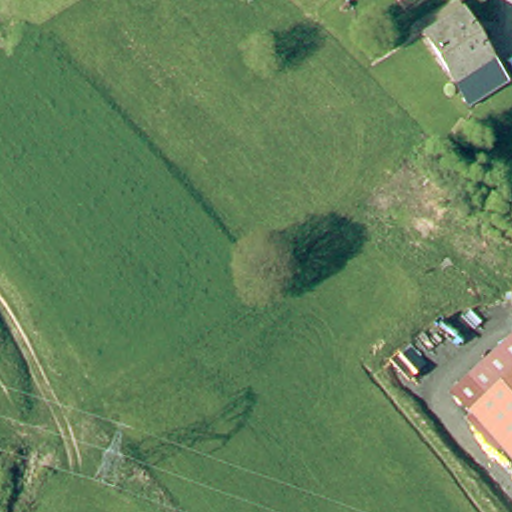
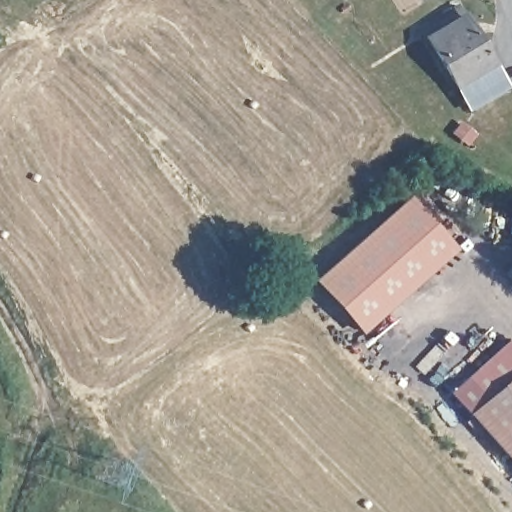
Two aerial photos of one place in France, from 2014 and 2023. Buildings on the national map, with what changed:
unchanged [(470,104),(433,40),(460,25),(470,20),(478,33),(506,82),(470,104)]
new [(455,249),(361,333),(312,280),(408,195),(455,249)]
new [(511,335),(512,337),(512,371),(465,412),(447,392),(511,335)]
unchanged [(512,371),(512,464),(465,412),(512,371)]

